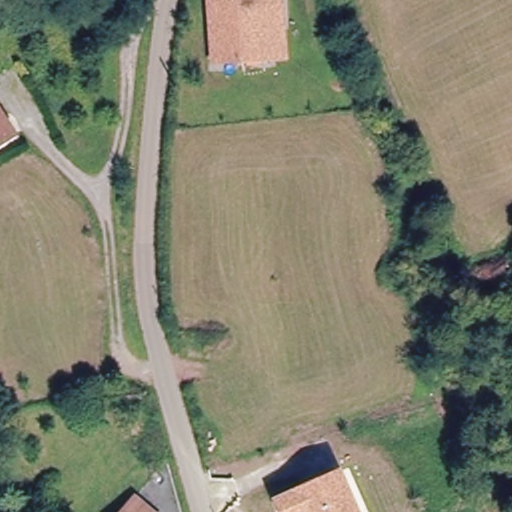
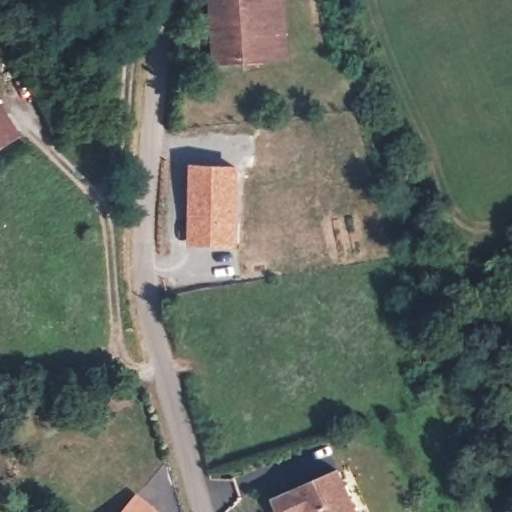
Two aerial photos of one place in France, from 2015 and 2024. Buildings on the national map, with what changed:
unchanged [(216,62),(212,0),(283,0),(284,23),(286,59),(270,60),(216,62)]
unchanged [(14,142),(0,149),(0,118),(14,142)]
new [(190,163),(242,166),(240,247),(188,247),(190,163)]
unchanged [(280,512),(274,498),(343,468),(362,512),(280,512)]
unchanged [(150,512),(123,512),(133,499),(150,512)]

